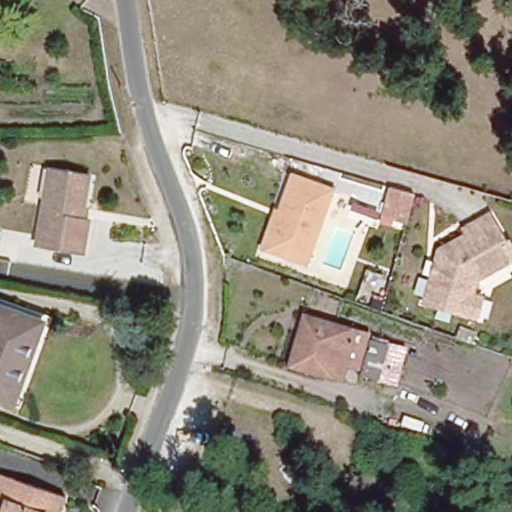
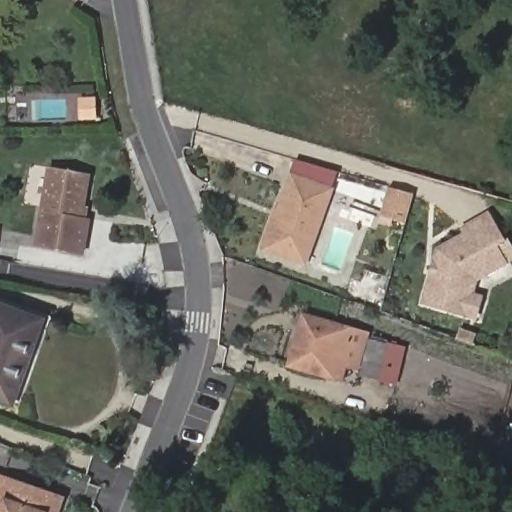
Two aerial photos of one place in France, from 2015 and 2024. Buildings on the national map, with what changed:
unchanged [(80,255),(36,249),(47,169),(86,174),(79,218),(86,219),(80,255)]
unchanged [(264,249),(269,235),(270,233),(268,232),(274,216),(277,217),(287,189),(291,179),(330,192),(327,202),(310,249),(305,263),(264,249)]
unchanged [(405,226),(382,219),(379,229),(345,218),(352,195),(382,207),(387,188),(415,195),(405,226)]
unchanged [(476,321),(463,317),(422,304),(429,279),(430,275),(432,264),(435,254),(447,249),(465,241),(464,235),(490,223),(503,249),(495,253),(502,266),(504,270),(474,284),(473,287),(470,297),(482,301),(476,321)]
unchanged [(42,323),(27,364),(23,363),(7,405),(0,402),(0,307),(42,323)]
unchanged [(339,326),(326,375),(292,365),(305,316),(339,326)]
unchanged [(357,351),(370,354),(374,341),(386,345),(408,351),(399,385),(377,379),(364,375),(351,372),(357,351)]
unchanged [(0,509),(0,469),(67,495),(61,512),(1,512),(2,510),(0,509)]

